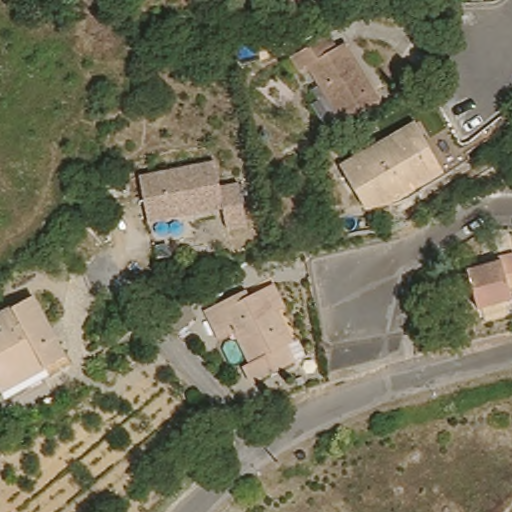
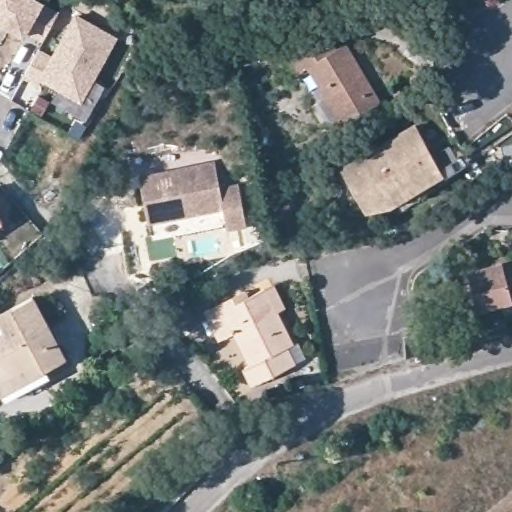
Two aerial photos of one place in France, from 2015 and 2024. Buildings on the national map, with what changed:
new [(36,0),(43,4),(59,14),(44,41),(26,32),(23,38),(0,25),(0,0),(36,0)]
new [(39,86),(25,77),(40,50),(53,58),(75,16),(117,39),(80,103),(41,81),(39,86)]
unchanged [(350,131),(317,83),(312,87),(303,71),(335,53),(345,66),(351,64),(387,117),(367,131),(355,139),(350,131)]
unchanged [(420,191),(417,186),(365,215),(341,174),(415,130),(442,177),(420,191)]
unchanged [(350,153),(325,166),(316,156),(343,141),(350,153)]
unchanged [(138,178),(213,161),(218,187),(237,183),(246,224),(227,228),(222,208),(148,224),(138,178)]
new [(3,223),(0,224),(0,219),(3,223)]
unchanged [(512,299),(503,300),(505,313),(471,319),(465,281),(482,277),(482,267),(495,265),(511,262),(512,268),(512,299)]
unchanged [(252,392),(243,376),(248,372),(233,339),(218,344),(205,316),(223,307),(241,298),(245,305),(262,298),(274,293),(286,318),(273,324),(298,370),(252,392)]
unchanged [(32,299),(64,358),(43,370),(36,361),(0,378),(0,317),(32,299)]
unchanged [(170,307),(182,302),(195,324),(173,335),(155,318),(161,311),(170,307)]
unchanged [(47,378),(4,401),(0,394),(0,378),(36,361),(43,370),(47,378)]

